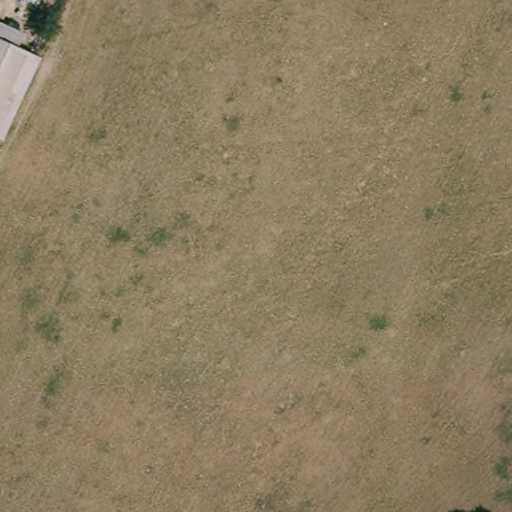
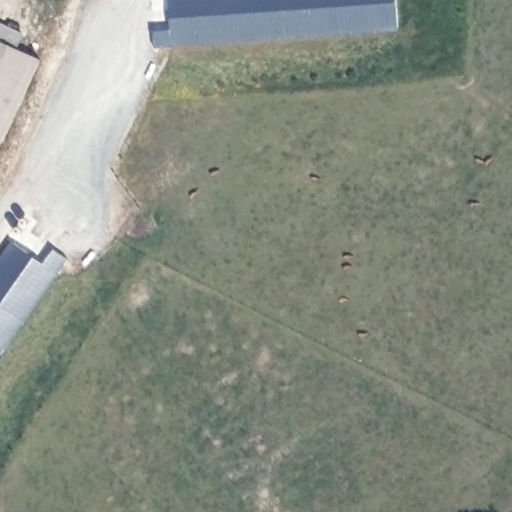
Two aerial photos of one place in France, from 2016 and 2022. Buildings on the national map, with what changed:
new [(154,32),(169,30),(168,0),(396,0),(398,31),(155,47),(154,32)]
unchanged [(5,46),(33,58),(0,139),(0,24),(12,29),(5,46)]
new [(0,258),(11,242),(41,264),(53,249),(66,259),(0,355),(0,258)]

